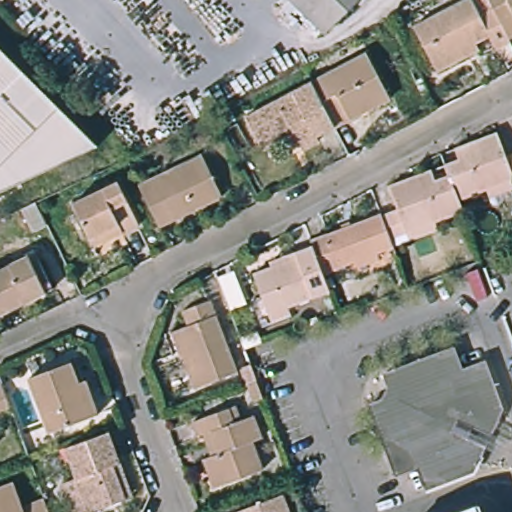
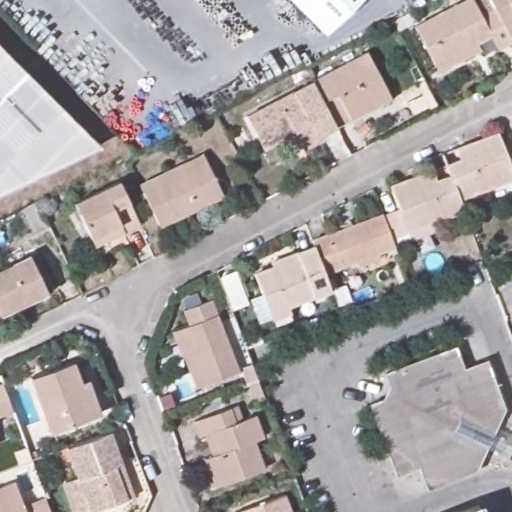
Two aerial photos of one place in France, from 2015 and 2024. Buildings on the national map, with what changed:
unchanged [(320,27),(293,0),(348,0),(320,27)]
unchanged [(437,72),(433,65),(413,27),(465,0),(486,0),(506,39),(508,42),(492,51),(485,38),(473,45),(476,51),(437,72)]
unchanged [(512,36),(506,39),(486,0),(512,0),(512,36)]
unchanged [(0,186),(0,44),(100,140),(0,186)]
unchanged [(365,48),(390,96),(350,116),(348,112),(331,121),(307,78),(365,48)]
unchanged [(331,121),(333,125),(316,135),(317,137),(301,146),(291,128),(260,145),(242,112),(307,78),(331,121)]
unchanged [(480,199),(477,193),(450,204),(440,176),(435,166),(448,161),(445,153),(486,138),(494,159),(502,156),(511,153),(512,156),(512,181),(503,184),(505,190),(498,192),(480,199)]
unchanged [(512,153),(512,156),(511,153),(512,153)]
unchanged [(199,154),(221,197),(160,229),(139,185),(199,154)]
unchanged [(420,238),(404,244),(400,235),(382,242),(373,218),(391,211),(383,189),(400,183),(426,173),(429,180),(440,176),(450,204),(454,215),(445,218),(429,224),(432,234),(420,238)]
unchanged [(82,231),(65,196),(105,178),(126,222),(113,228),(87,242),(82,231)]
unchanged [(351,270),(350,265),(315,278),(304,246),(301,240),(371,214),(373,218),(382,242),(385,251),(372,256),(375,262),(351,270)]
unchanged [(266,324),(263,316),(247,274),(266,268),(265,262),(289,252),(304,246),(315,278),(322,294),(283,309),(286,317),(266,324)]
unchanged [(433,255),(445,251),(452,269),(440,273),(433,255)]
unchanged [(35,253),(51,289),(0,314),(0,269),(35,253)]
unchanged [(199,382),(176,322),(184,319),(179,306),(205,296),(232,370),(199,382)]
unchanged [(473,468),(427,485),(422,471),(399,479),(376,418),(390,413),(398,398),(391,379),(451,357),(457,373),(481,364),(498,409),(486,413),(467,453),(473,468)]
unchanged [(25,375),(69,359),(76,378),(85,375),(97,407),(44,427),(25,375)]
unchanged [(243,383),(237,368),(248,364),(253,379),(261,399),(250,403),(243,383)]
unchanged [(0,416),(0,392),(8,413),(0,416)]
unchanged [(206,457),(214,455),(205,432),(192,437),(187,422),(225,408),(230,423),(252,415),(260,436),(251,439),(262,468),(216,485),(206,457)]
unchanged [(63,482),(76,477),(65,446),(107,431),(118,460),(129,490),(122,493),(87,506),(74,510),(63,482)]
unchanged [(10,481),(18,503),(38,495),(45,512),(0,512),(0,485),(10,481)]
unchanged [(282,493),(289,512),(232,512),(236,510),(282,493)]
unchanged [(493,512),(459,512),(489,500),(493,512)]

